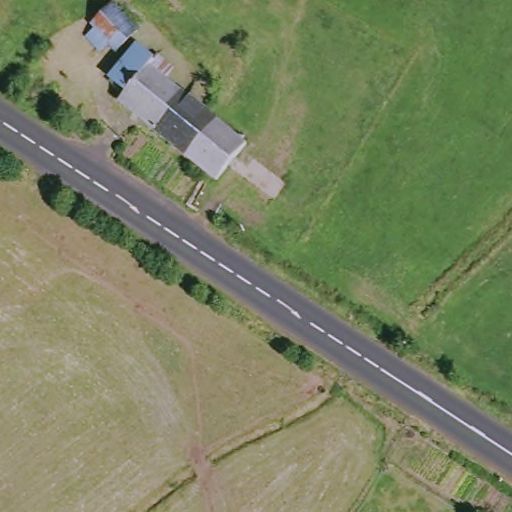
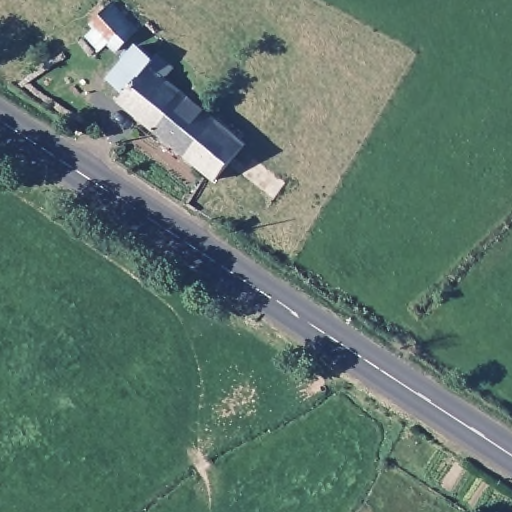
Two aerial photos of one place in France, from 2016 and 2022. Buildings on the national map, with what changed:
unchanged [(142,29),(121,51),(112,43),(105,51),(91,38),(98,30),(94,26),(118,4),(142,29)]
unchanged [(155,61),(161,55),(178,69),(171,78),(251,142),(221,178),(123,98),(130,90),(116,77),(139,49),(155,61)]

